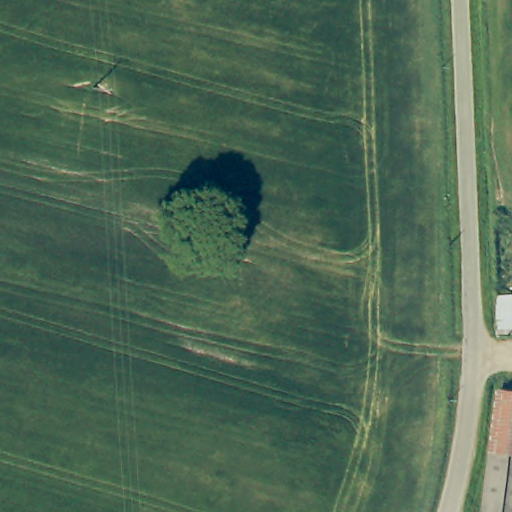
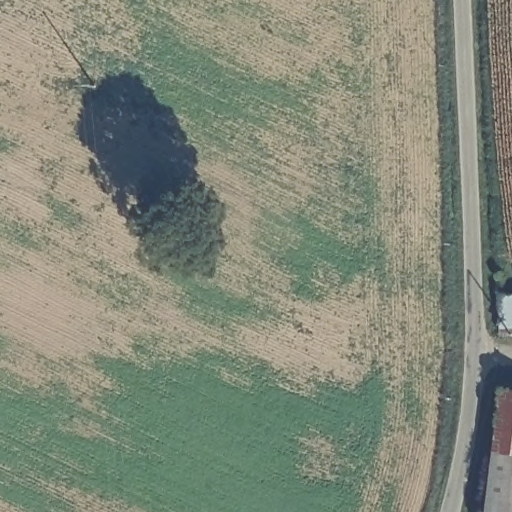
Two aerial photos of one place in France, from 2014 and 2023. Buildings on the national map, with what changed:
unchanged [(499,291),(512,291),(512,330),(499,331),(498,291),(499,291)]
unchanged [(492,497),(509,388),(512,388),(512,512),(490,512),(492,497)]

